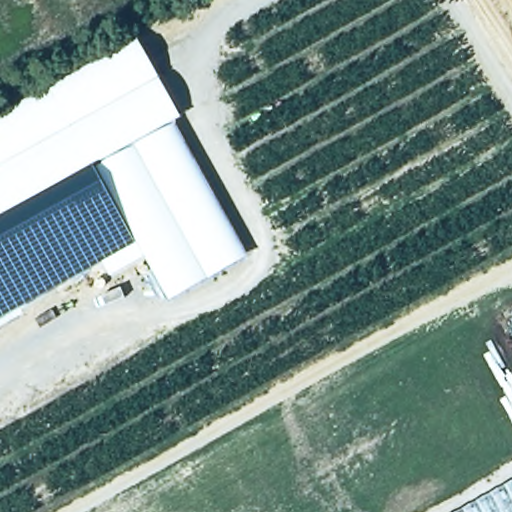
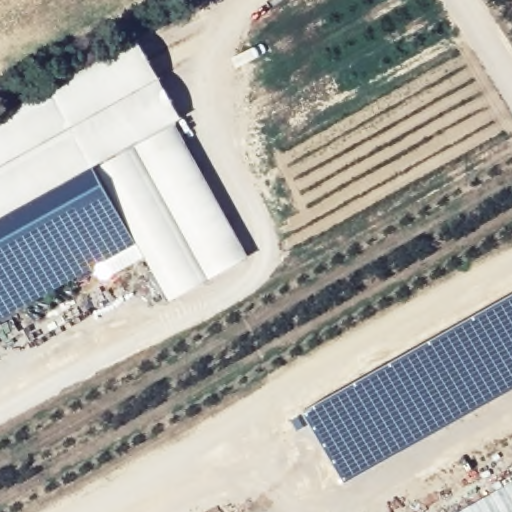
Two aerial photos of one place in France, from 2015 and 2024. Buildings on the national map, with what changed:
unchanged [(181,118),(174,121),(248,256),(169,301),(144,258),(110,276),(103,262),(0,319),(0,113),(134,38),(181,118)]
new [(400,352),(512,290),(512,390),(461,419),(344,482),(303,408),(400,352)]
unchanged [(451,512),(512,478),(512,512),(451,512)]

